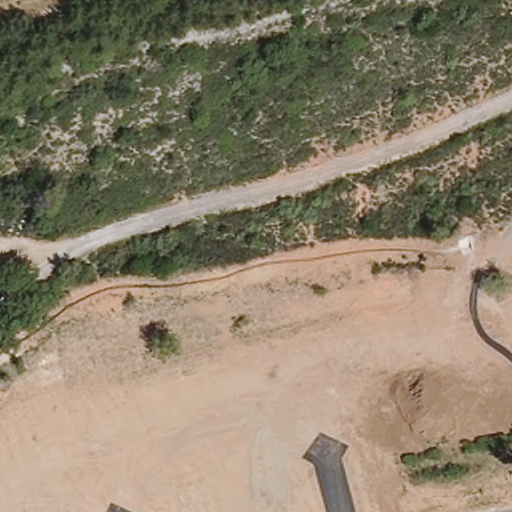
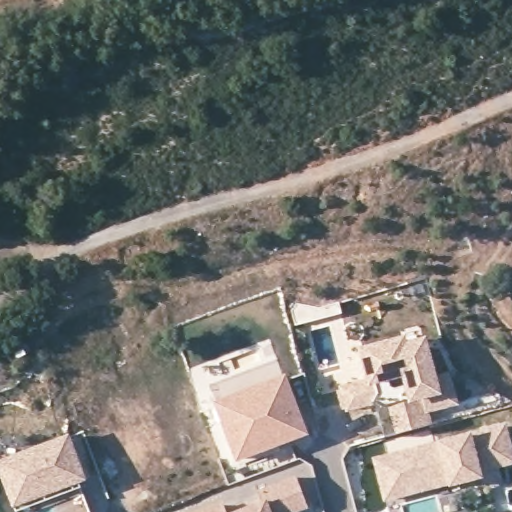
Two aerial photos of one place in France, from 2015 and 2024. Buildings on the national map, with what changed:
new [(348,411),(343,392),(375,384),(367,352),(407,342),(409,348),(428,343),(438,379),(450,376),(452,380),(460,406),(430,413),(434,427),(389,439),(382,414),(385,409),(378,403),(348,411)]
new [(285,378),(305,435),(236,459),(216,403),(285,378)]
new [(512,455),(512,464),(487,470),(485,459),(476,461),(480,478),(451,486),(450,482),(429,488),(429,489),(398,497),(386,500),(376,460),(388,457),(505,427),(512,455)]
new [(69,436),(85,480),(80,481),(91,512),(17,512),(0,466),(0,463),(69,436)]
new [(260,491),(295,478),(307,508),(298,512),(241,512),(265,503),(260,491)]
demolished [(490,488),(512,483),(512,505),(496,507),(490,488)]
new [(225,512),(207,512),(222,506),(225,512)]

